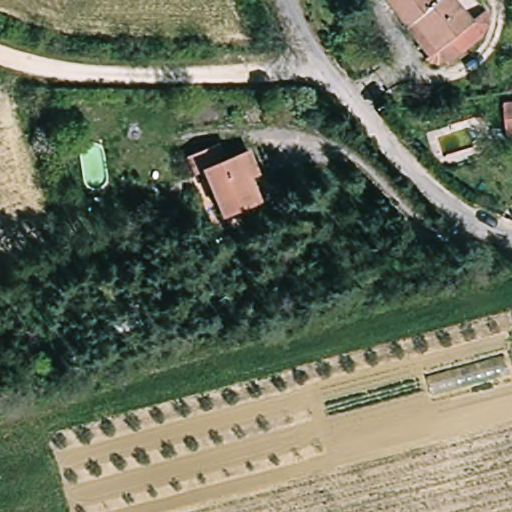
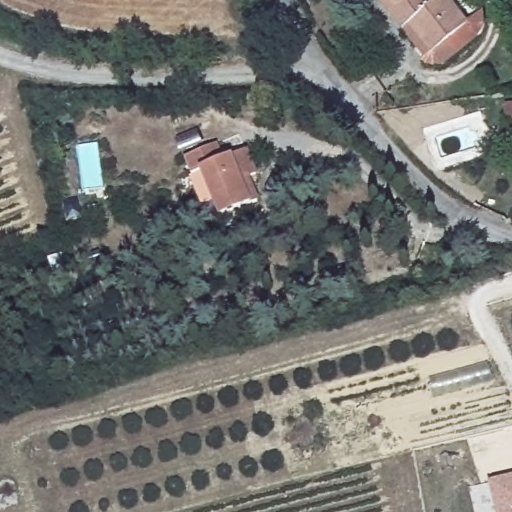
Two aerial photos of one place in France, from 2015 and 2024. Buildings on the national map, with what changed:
unchanged [(434,0),(437,0),(461,26),(428,58),(414,44),(421,36),(411,27),(401,35),(374,5),(380,0),(425,0),(429,5),(434,0)]
unchanged [(244,179),(255,206),(210,223),(191,175),(178,180),(171,163),(211,146),(218,164),(241,155),(251,176),(244,179)]
new [(487,481),(512,476),(512,512),(495,512),(487,481)]

